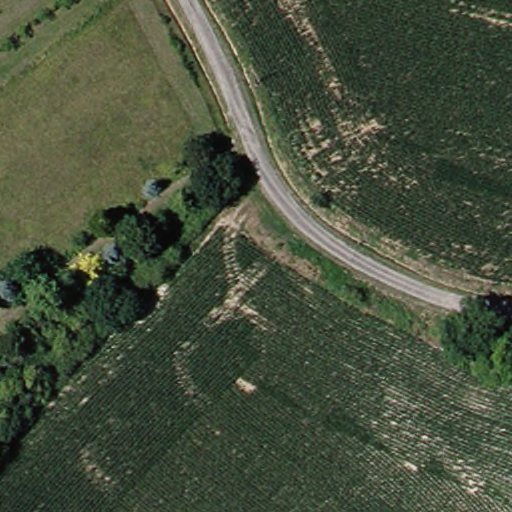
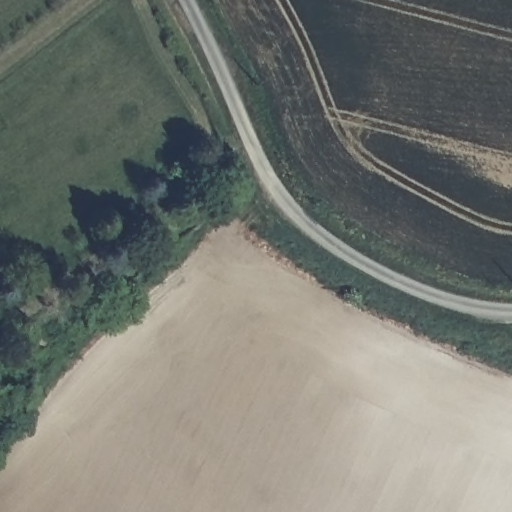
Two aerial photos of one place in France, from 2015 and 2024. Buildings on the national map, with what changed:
[]

